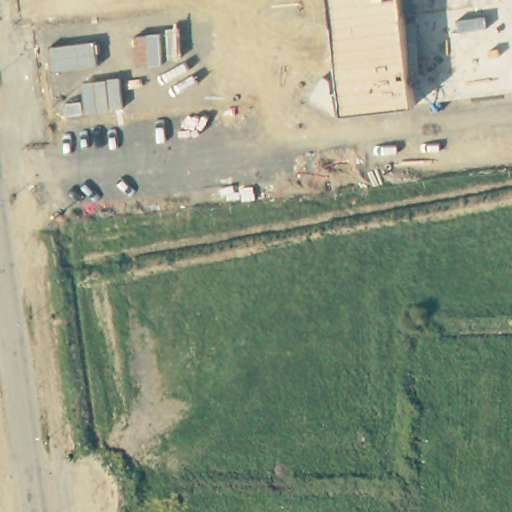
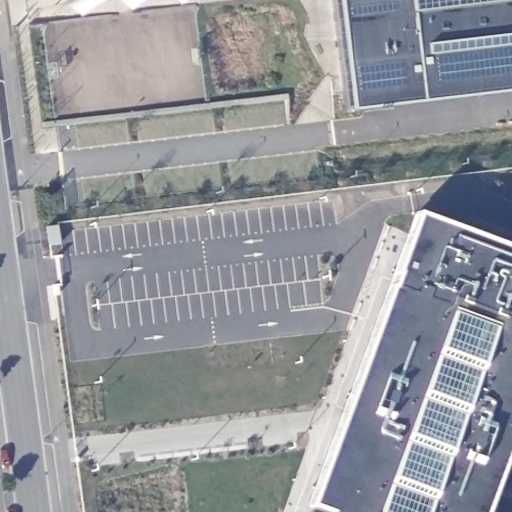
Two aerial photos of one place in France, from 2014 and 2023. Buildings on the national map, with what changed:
unchanged [(349,111),(337,0),(406,0),(418,102),(349,111)]
new [(512,91),(418,102),(406,0),(512,0),(512,91)]
new [(332,512),(317,507),(363,388),(357,387),(399,289),(393,287),(417,214),(512,249),(512,342),(440,512),(332,512)]

